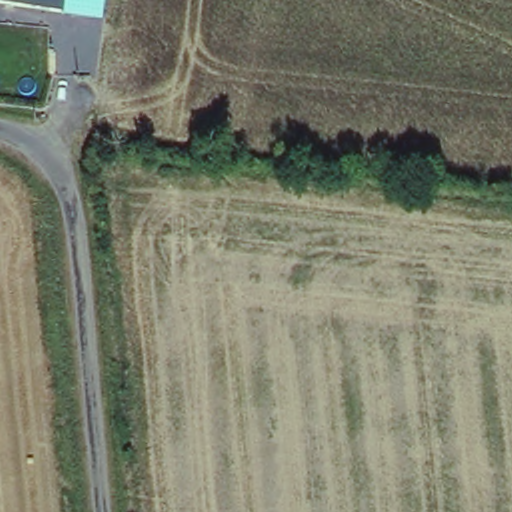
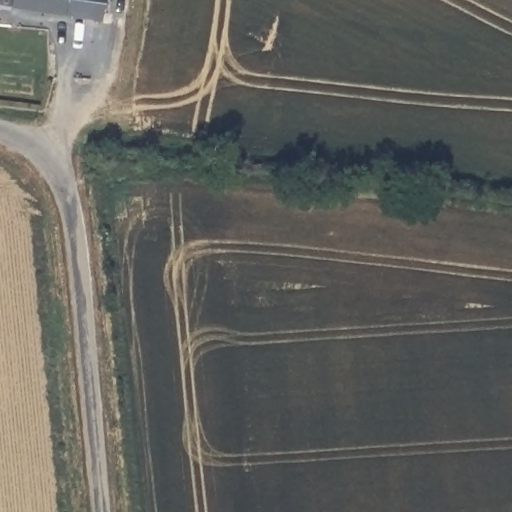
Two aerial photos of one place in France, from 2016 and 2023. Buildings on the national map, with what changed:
unchanged [(64,7),(2,0),(65,0),(64,7)]

